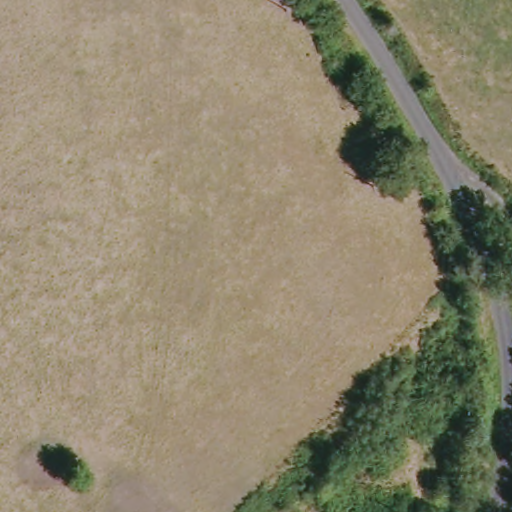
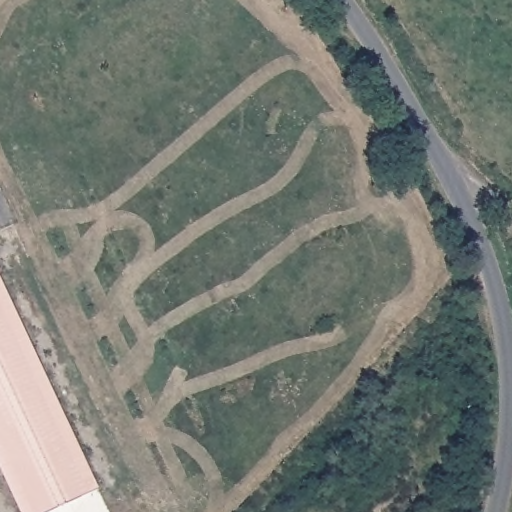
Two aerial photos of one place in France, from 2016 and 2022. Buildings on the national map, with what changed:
new [(21,512),(0,466),(0,276),(100,487),(45,512),(21,512)]

